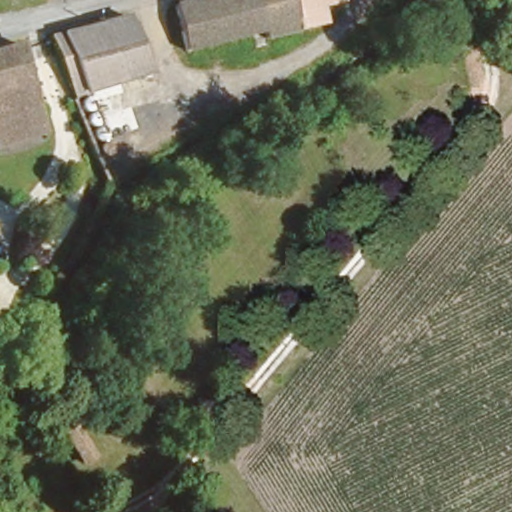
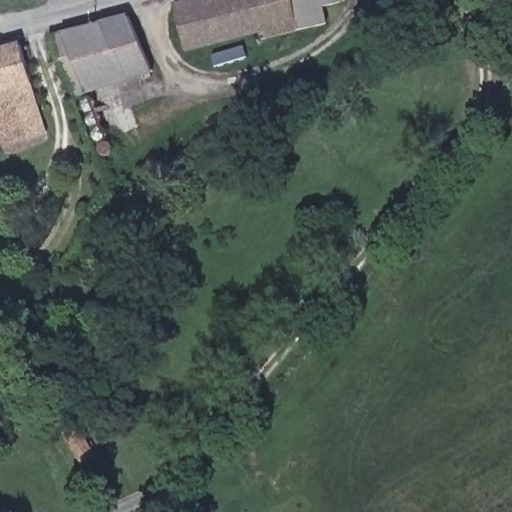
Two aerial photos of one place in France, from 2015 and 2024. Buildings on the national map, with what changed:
unchanged [(343,0),(344,5),(321,14),(325,28),(268,46),(263,33),(189,50),(179,5),(199,0),(343,0)]
unchanged [(127,16),(147,74),(79,101),(49,39),(127,16)]
unchanged [(19,41),(43,124),(0,137),(0,46),(19,41)]
unchanged [(1,372),(5,383),(0,385),(0,372),(1,372)]
unchanged [(102,470),(91,478),(76,456),(87,449),(102,470)]

